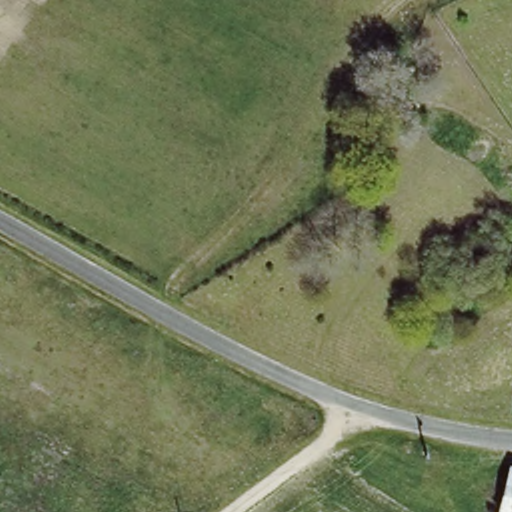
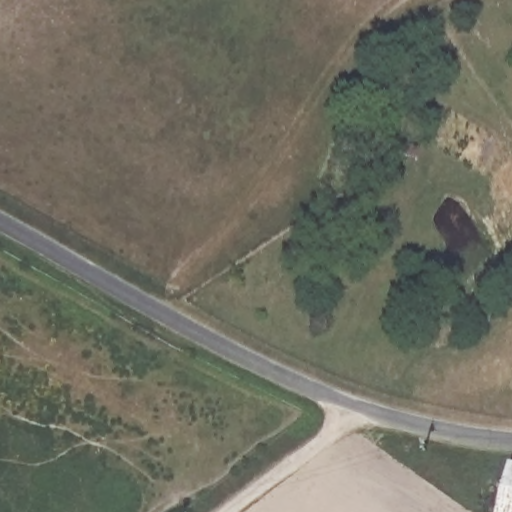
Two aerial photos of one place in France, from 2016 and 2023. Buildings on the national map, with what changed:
unchanged [(506,477),(509,464),(512,465),(512,512),(483,512),(491,477),(506,477)]

